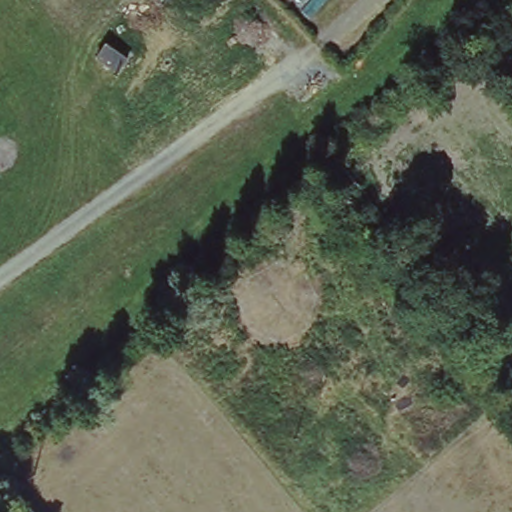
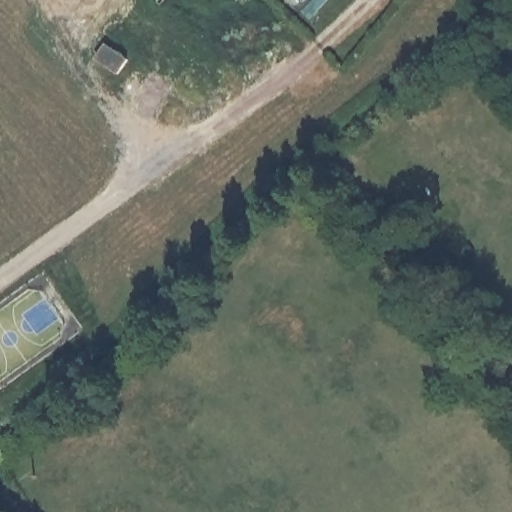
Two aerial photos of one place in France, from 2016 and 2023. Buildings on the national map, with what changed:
unchanged [(109,47),(128,60),(115,77),(97,64),(109,47)]

